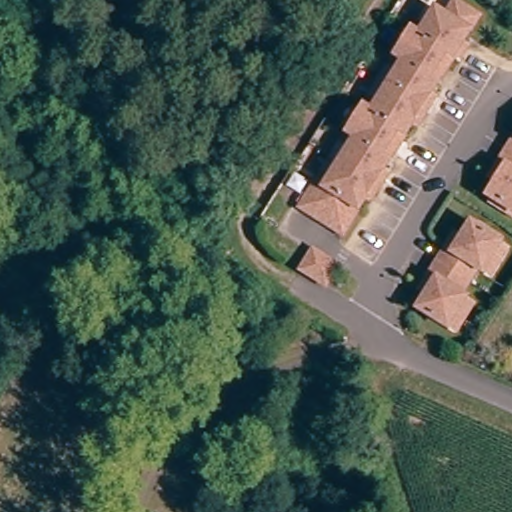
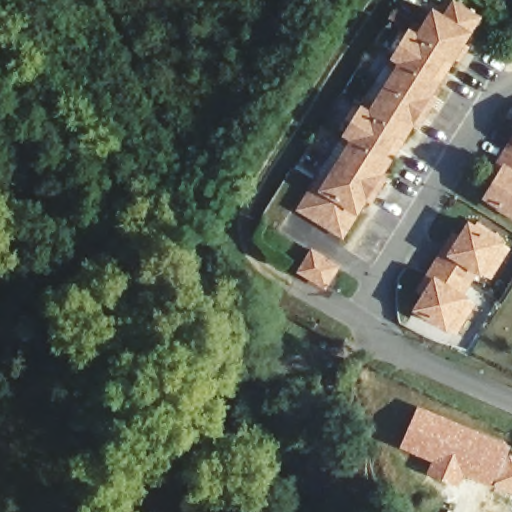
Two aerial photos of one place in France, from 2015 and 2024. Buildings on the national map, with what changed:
unchanged [(381,194),(372,208),(366,204),(343,240),(301,213),(321,180),(343,145),(369,104),(392,68),(418,27),(426,32),(439,11),(449,18),(459,3),(483,19),(450,71),(441,84),(433,98),(439,102),(430,117),(420,133),(413,129),(400,151),(391,164),(384,176),(390,180),(381,194)]
unchanged [(488,199),(498,183),(491,179),(500,165),(512,146),(512,213),(488,199)]
unchanged [(456,335),(448,330),(418,310),(428,295),(421,291),(430,276),(447,250),(456,235),(463,239),(472,224),(503,243),(510,248),(491,279),(484,274),(478,271),(462,296),(467,299),(475,304),(456,335)]
new [(511,446),(508,453),(512,455),(512,493),(494,486),(493,488),(464,476),(459,486),(426,473),(432,462),(400,447),(418,406),(511,446)]

